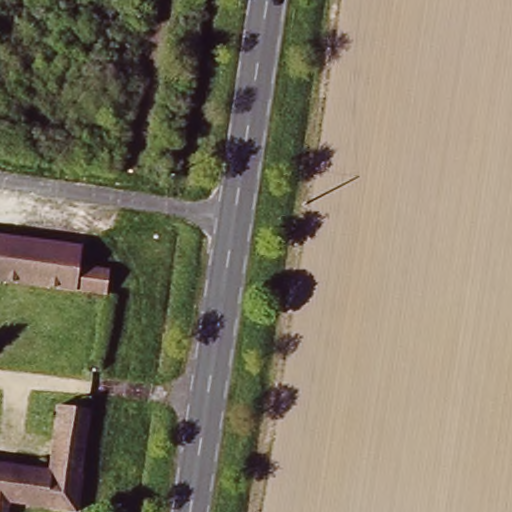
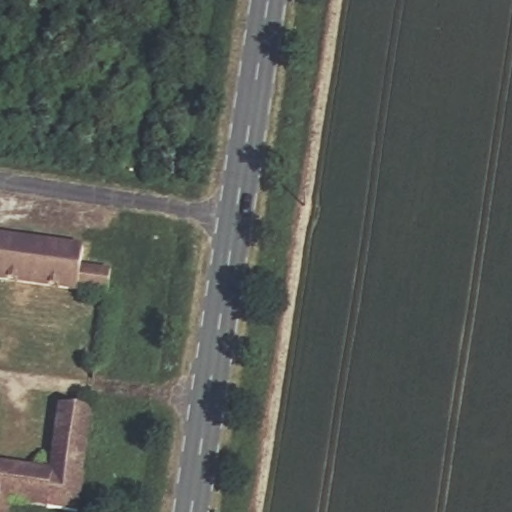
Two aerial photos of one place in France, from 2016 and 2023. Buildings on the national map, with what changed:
unchanged [(102,270),(100,293),(0,279),(0,238),(78,249),(76,266),(102,270)]
unchanged [(74,506),(10,501),(9,512),(0,512),(0,465),(53,472),(61,408),(89,412),(74,506)]

